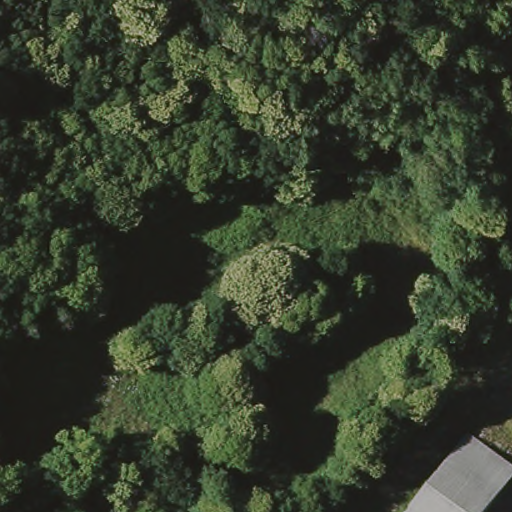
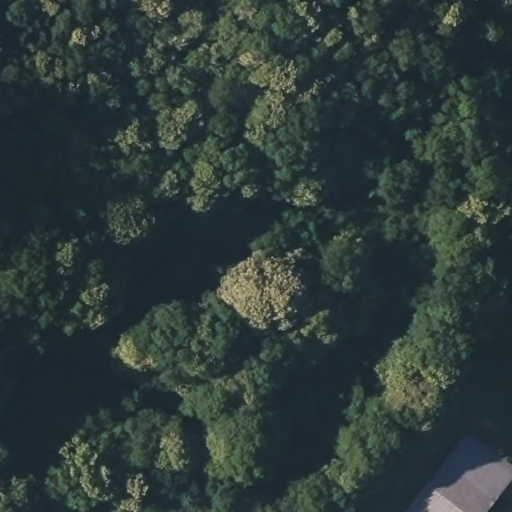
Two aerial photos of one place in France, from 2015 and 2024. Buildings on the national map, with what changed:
unchanged [(474,441),(425,512),(407,512),(463,432),(474,441)]
unchanged [(474,441),(512,470),(512,481),(490,512),(425,512),(474,441)]

